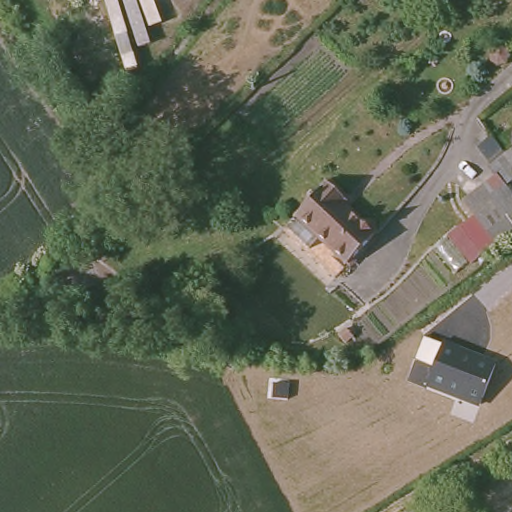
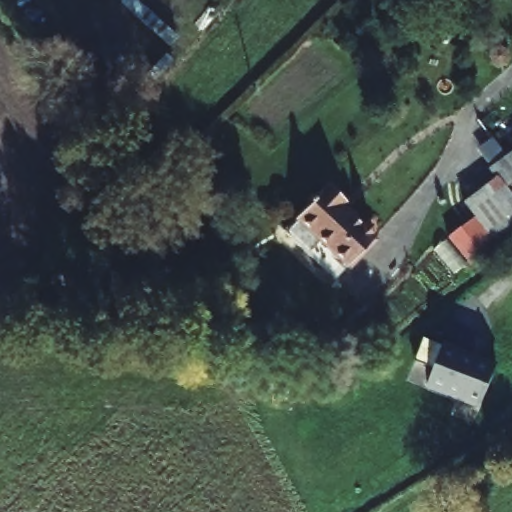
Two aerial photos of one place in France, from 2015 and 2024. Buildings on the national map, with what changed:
unchanged [(475,147),(512,124),(512,226),(492,239),(462,189),(487,170),(475,147)]
unchanged [(341,198),(337,203),(357,222),(360,219),(367,226),(365,228),(372,236),(346,263),(293,215),(324,182),(341,198)]
unchanged [(497,360),(480,408),(426,388),(444,341),(497,360)]

